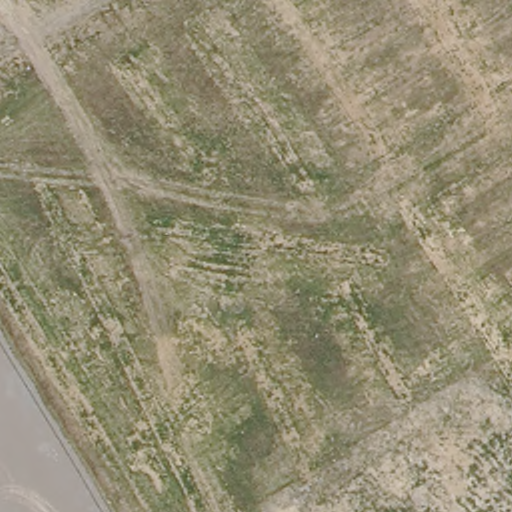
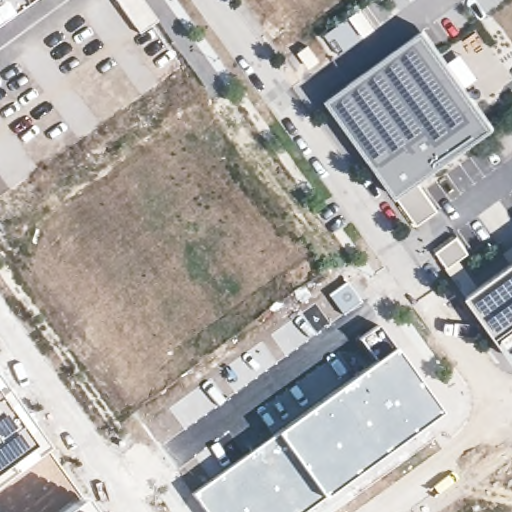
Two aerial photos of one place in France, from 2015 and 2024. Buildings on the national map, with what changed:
new [(0,0),(32,0),(0,23),(0,0)]
new [(348,19),(361,40),(340,54),(326,33),(348,19)]
new [(417,226),(397,198),(326,101),(425,30),(494,128),(418,184),(438,211),(417,226)]
new [(310,69),(298,53),(308,46),(319,61),(310,69)]
new [(467,296),(448,269),(436,253),(457,237),(469,254),(459,261),(479,288),(512,263),(512,357),(467,296)]
new [(348,282),(361,301),(342,315),(329,295),(348,282)]
new [(374,360),(385,352),(394,346),(443,413),(323,498),(275,432),(374,360)]
new [(0,385),(92,512),(0,512),(0,385)]
demolished [(450,475),(447,469),(438,454),(417,467),(408,451),(434,434),(442,446),(491,415),(509,443),(512,448),(512,512),(474,512),(460,491),(450,475)]
new [(275,432),(323,498),(303,512),(204,512),(190,493),(275,432)]

